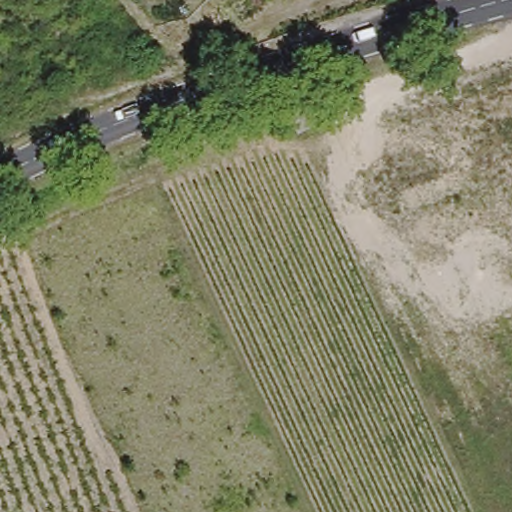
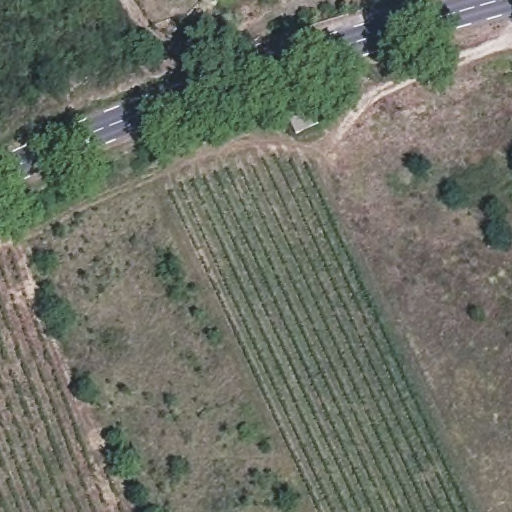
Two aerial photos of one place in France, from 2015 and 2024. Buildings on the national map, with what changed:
unchanged [(325,132),(296,140),(282,112),(316,102),(325,132)]

